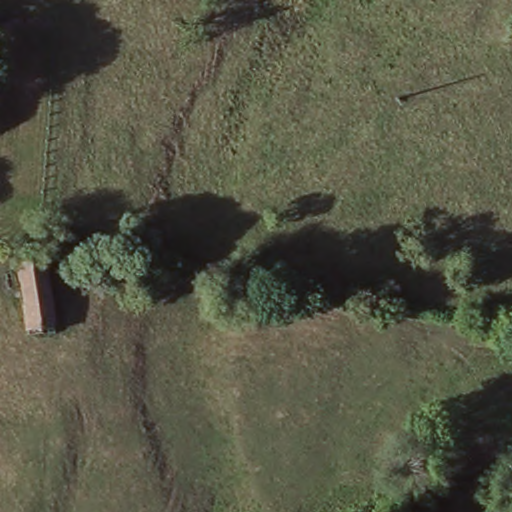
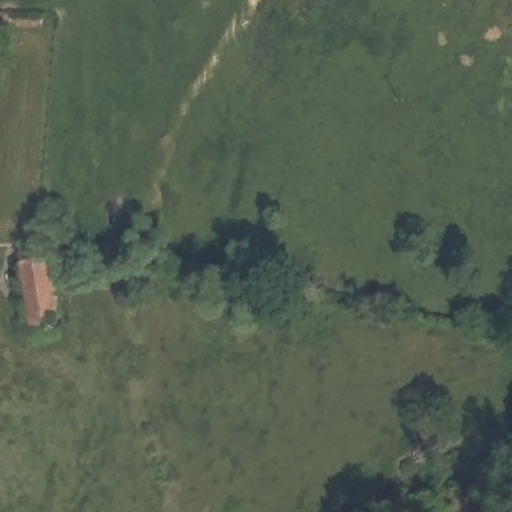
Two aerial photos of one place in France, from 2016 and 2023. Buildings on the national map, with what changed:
unchanged [(42,247),(53,322),(27,326),(16,251),(42,247)]

